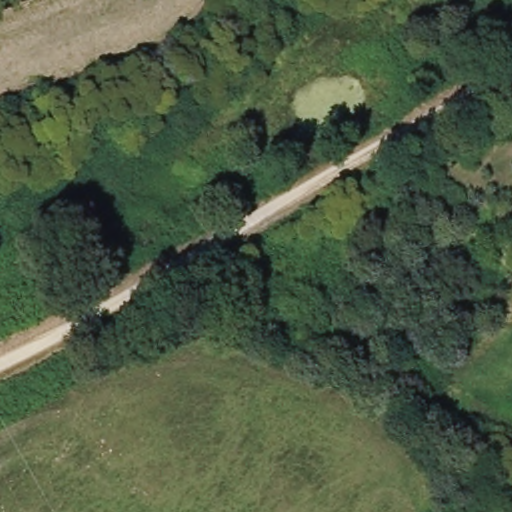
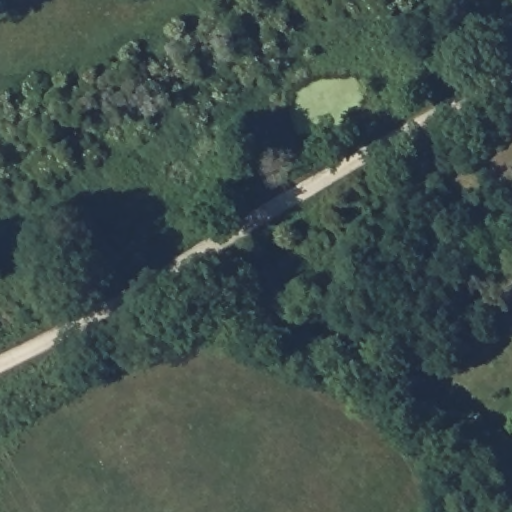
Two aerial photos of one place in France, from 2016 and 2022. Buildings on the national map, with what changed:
unchanged [(512,152),(512,176),(507,182),(494,173),(511,151),(512,152)]

